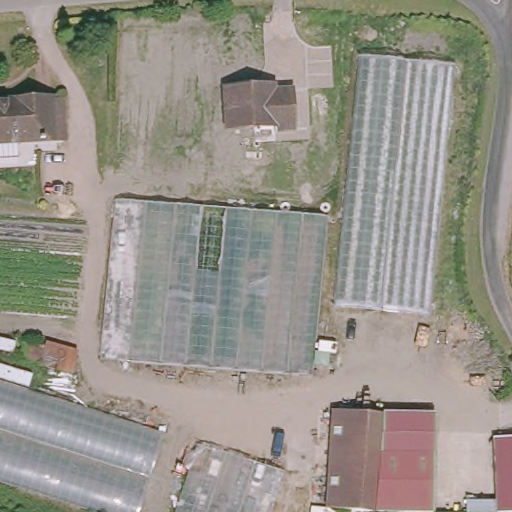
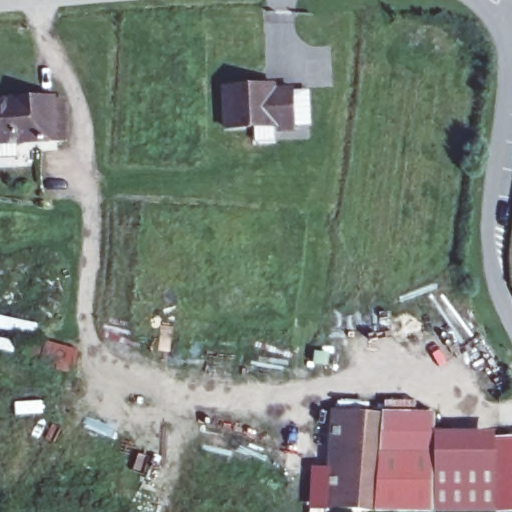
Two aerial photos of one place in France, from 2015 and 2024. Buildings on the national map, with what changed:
demolished [(461,66),(432,314),(332,309),(360,54),(461,66)]
unchanged [(221,124),(217,84),(259,82),(259,88),(265,88),(286,87),(289,126),(267,128),(266,121),(260,121),(221,124)]
unchanged [(0,99),(48,97),(49,139),(9,140),(10,154),(0,155),(0,99)]
demolished [(178,210),(162,359),(105,356),(119,198),(179,201),(178,210)]
demolished [(334,211),(320,374),(162,359),(179,201),(334,211)]
demolished [(0,378),(289,470),(275,512),(113,512),(0,476),(0,378)]
unchanged [(332,412),(392,414),(432,416),(431,433),(427,512),(351,512),(342,511),(335,511),(327,511),(329,459),(332,412)]
new [(494,438),(496,500),(497,512),(427,512),(431,433),(431,430),(497,431),(497,438),(494,438)]
unchanged [(497,512),(496,500),(494,438),(512,437),(512,512),(497,512)]

